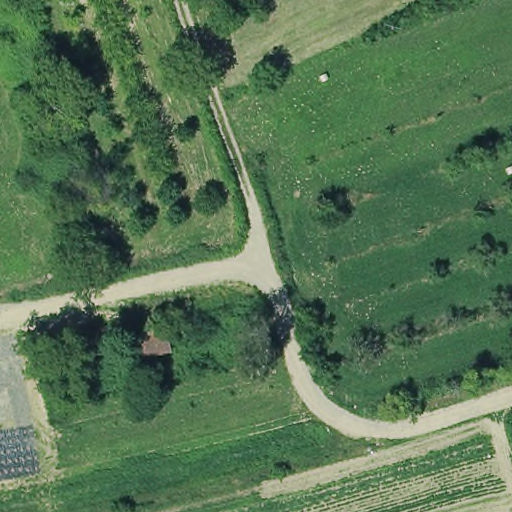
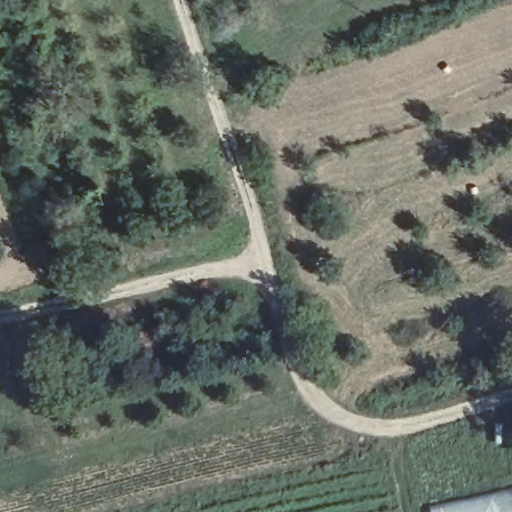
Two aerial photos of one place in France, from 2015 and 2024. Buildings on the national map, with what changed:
unchanged [(135,333),(163,323),(174,350),(143,359),(135,333)]
new [(430,512),(429,506),(512,488),(512,512),(430,512)]

